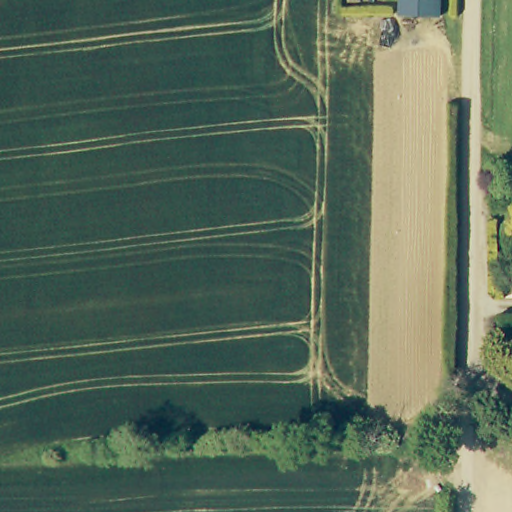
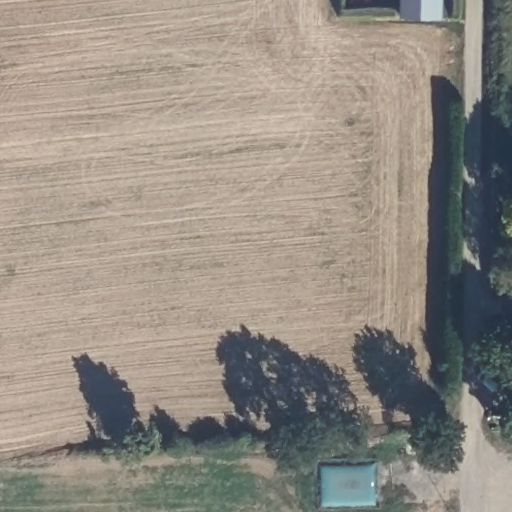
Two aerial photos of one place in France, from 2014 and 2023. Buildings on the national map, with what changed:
unchanged [(453,0),(453,12),(412,11),(412,0),(453,0)]

